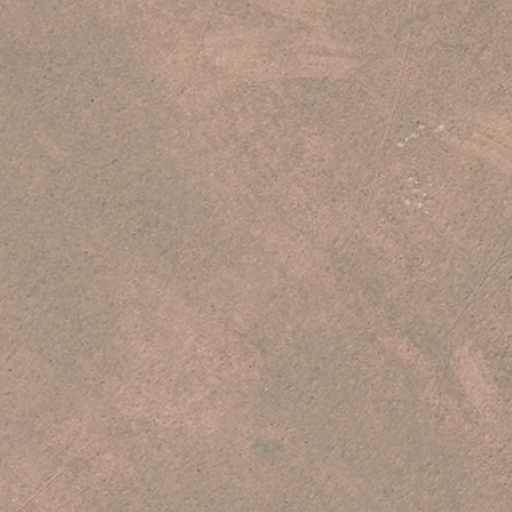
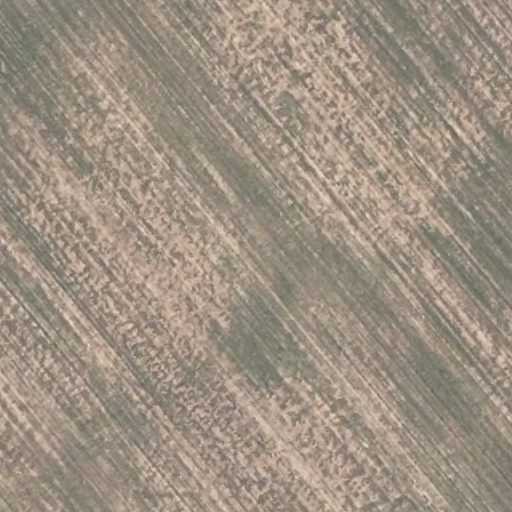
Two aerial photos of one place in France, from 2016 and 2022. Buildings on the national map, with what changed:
[]

